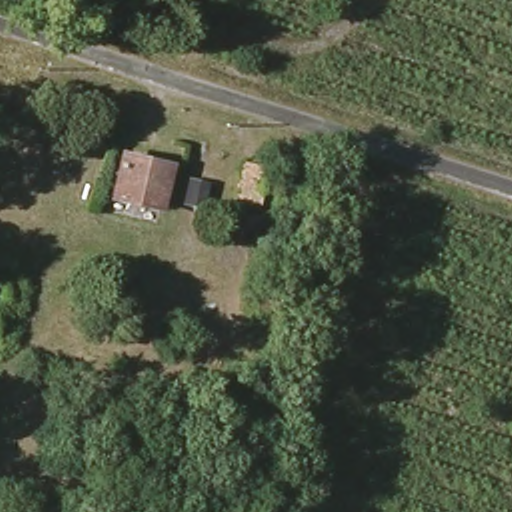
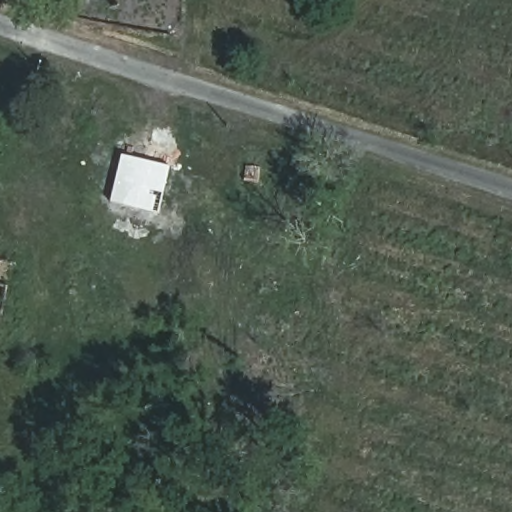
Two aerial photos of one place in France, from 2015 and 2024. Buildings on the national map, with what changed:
unchanged [(169,167),(158,210),(111,196),(121,153),(169,167)]
unchanged [(263,166),(258,206),(235,204),(241,161),(263,166)]
unchanged [(0,314),(0,245),(13,247),(0,314)]

